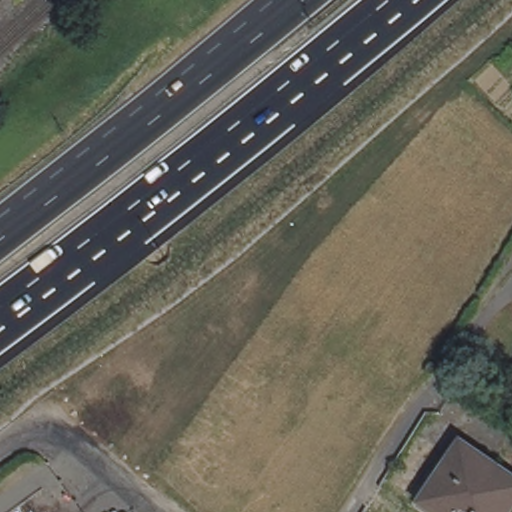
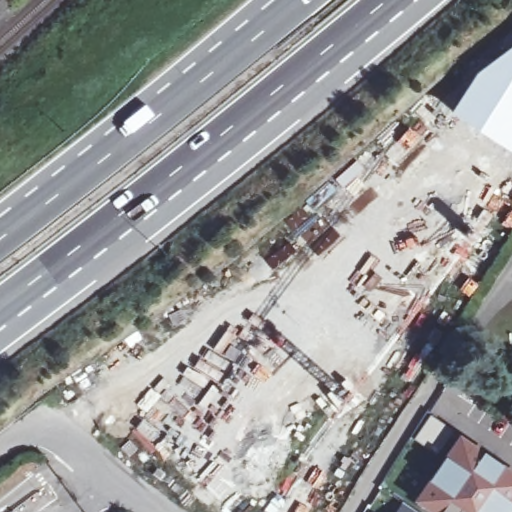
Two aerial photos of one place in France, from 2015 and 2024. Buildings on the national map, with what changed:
new [(512,44),(512,153),(449,112),(477,70),(512,44)]
new [(472,386),(464,398),(446,386),(453,374),(472,386)]
new [(414,438),(430,414),(454,430),(437,454),(414,438)]
unchanged [(435,512),(430,509),(421,503),(441,473),(455,453),(458,447),(462,441),(477,452),(512,476),(512,507),(508,512),(435,512)]
new [(418,512),(405,512),(409,506),(418,512)]

